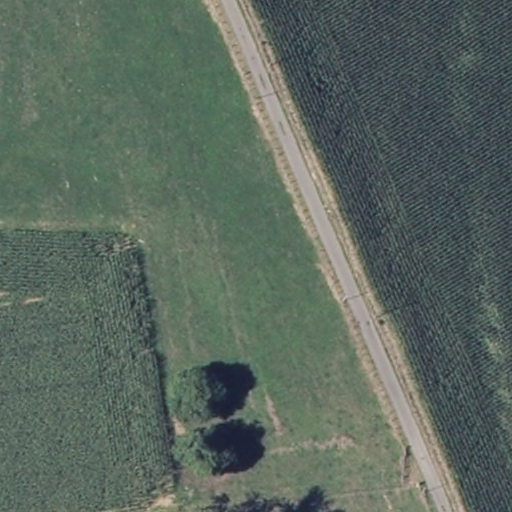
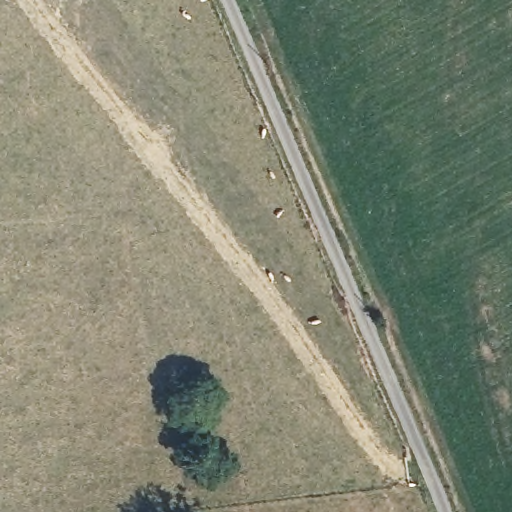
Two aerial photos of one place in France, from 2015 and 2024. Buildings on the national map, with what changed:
[]

